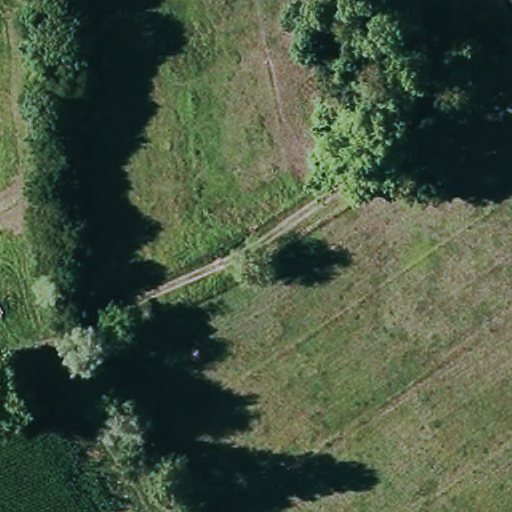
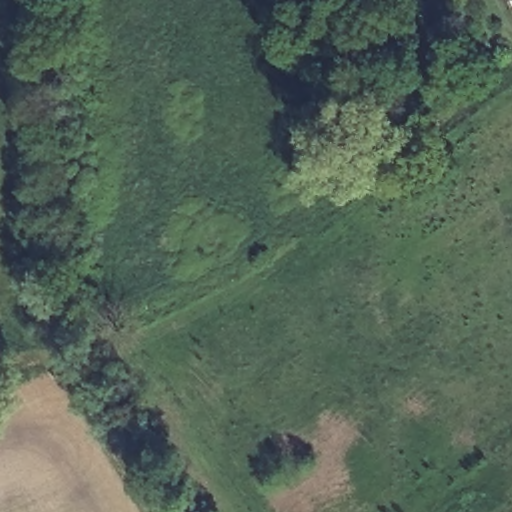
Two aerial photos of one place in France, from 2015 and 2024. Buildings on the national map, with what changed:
[]

